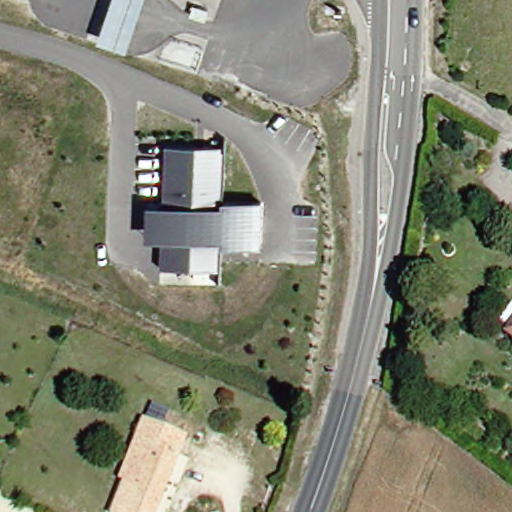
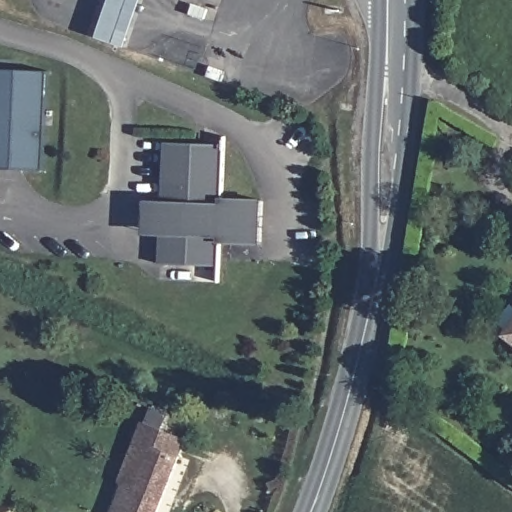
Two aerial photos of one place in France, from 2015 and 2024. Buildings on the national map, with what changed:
unchanged [(100,34),(111,0),(142,0),(128,44),(100,34)]
unchanged [(214,14),(211,24),(196,20),(200,10),(214,14)]
new [(50,74),(45,174),(0,173),(0,73),(46,74),(50,74)]
unchanged [(145,199),(160,199),(163,139),(223,141),(221,198),(259,199),(257,242),(219,240),(218,264),(159,263),(160,231),(145,231),(145,199)]
unchanged [(498,343),(502,337),(496,331),(508,315),(512,319),(512,352),(498,343)]
unchanged [(120,485),(114,482),(131,443),(138,424),(181,441),(178,449),(175,448),(149,512),(109,512),(120,485)]

